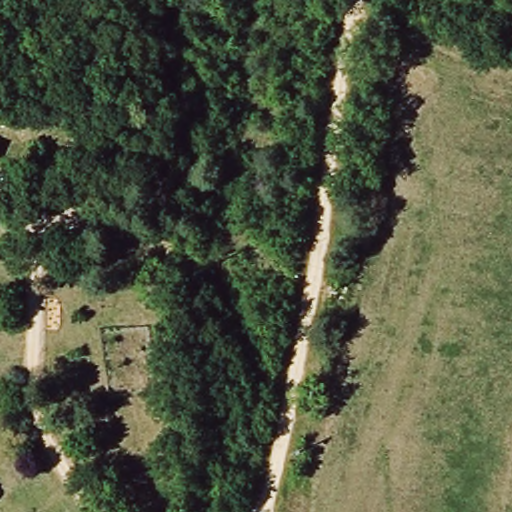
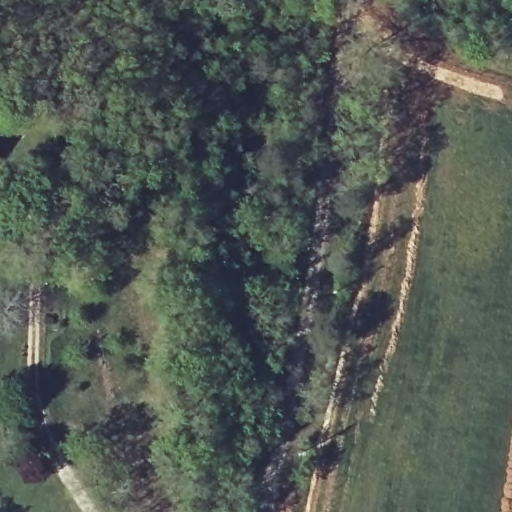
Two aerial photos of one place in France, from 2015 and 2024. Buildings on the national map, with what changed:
unchanged [(33,183),(44,192),(31,207),(20,199),(30,186),(33,183)]
unchanged [(40,210),(57,190),(81,209),(63,229),(40,210)]

